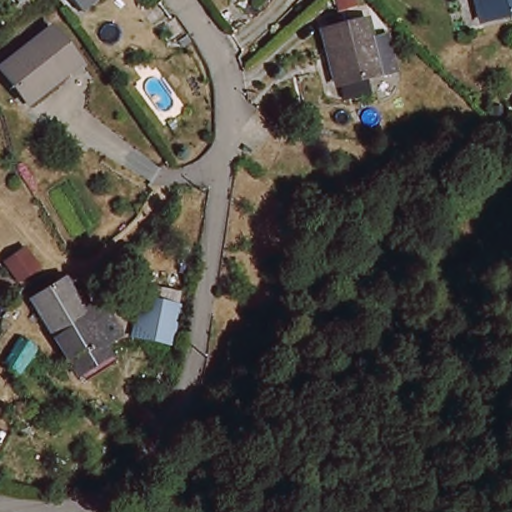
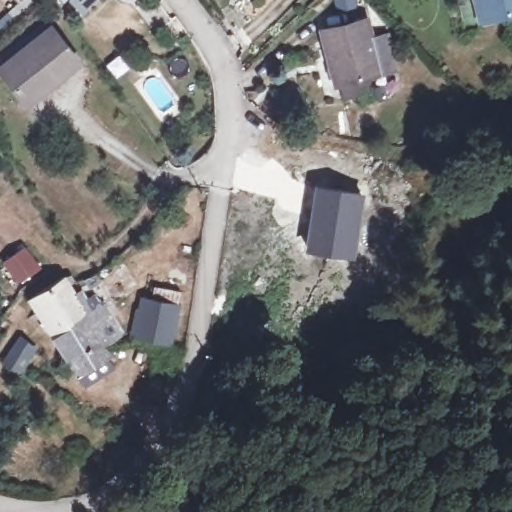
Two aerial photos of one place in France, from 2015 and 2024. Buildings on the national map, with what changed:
unchanged [(70,0),(80,0),(74,4),(70,0)]
unchanged [(485,0),(512,0),(512,9),(488,14),(485,0)]
unchanged [(391,66),(372,69),(328,76),(320,24),(363,18),(367,36),(387,34),(391,66)]
unchanged [(54,80),(30,48),(55,28),(85,63),(58,85),(54,80)]
unchanged [(54,80),(22,102),(0,72),(0,71),(30,48),(54,80)]
new [(314,184),(367,193),(356,261),(305,252),(314,184)]
unchanged [(28,243),(55,282),(23,301),(0,266),(0,261),(28,243)]
unchanged [(55,282),(83,324),(101,313),(115,334),(100,345),(105,354),(73,373),(23,301),(55,282)]
unchanged [(137,332),(142,296),(177,300),(172,337),(137,332)]
demolished [(17,322),(7,332),(4,336),(0,332),(0,320),(8,313),(17,322)]

